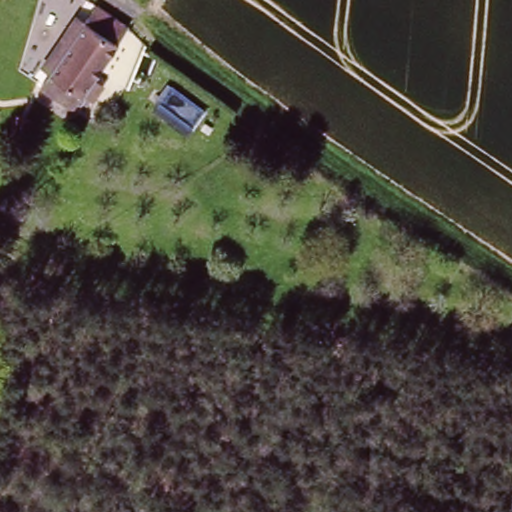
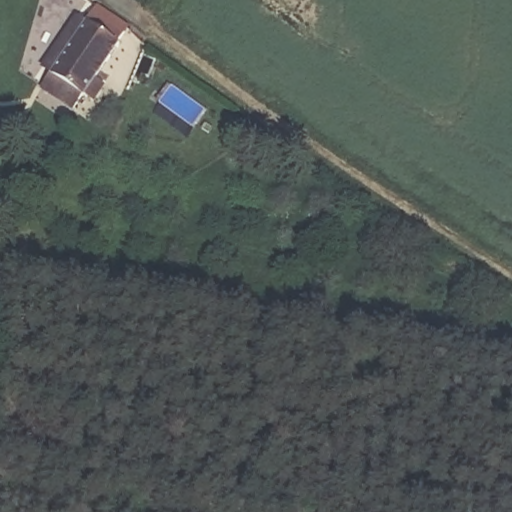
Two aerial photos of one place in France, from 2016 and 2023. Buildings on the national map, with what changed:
unchanged [(99,0),(102,0),(128,19),(119,32),(123,35),(86,88),(83,86),(69,105),(40,85),(99,0)]
unchanged [(0,229),(0,212),(4,213),(0,229)]

